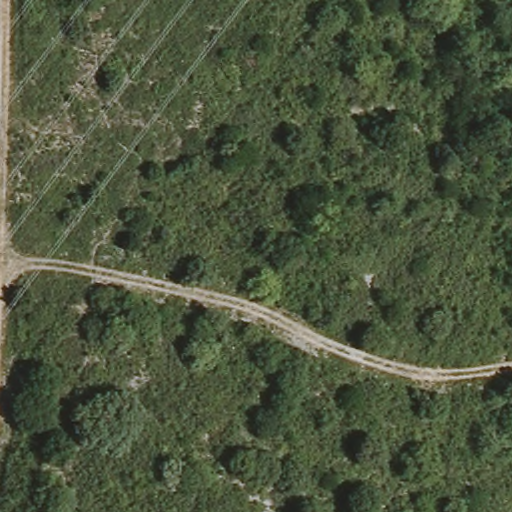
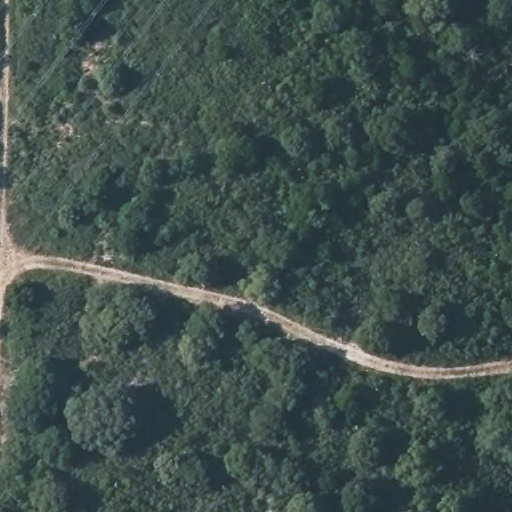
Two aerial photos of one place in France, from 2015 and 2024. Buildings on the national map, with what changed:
[]

